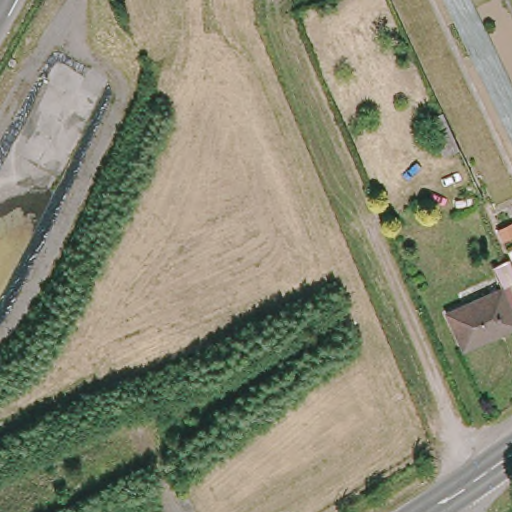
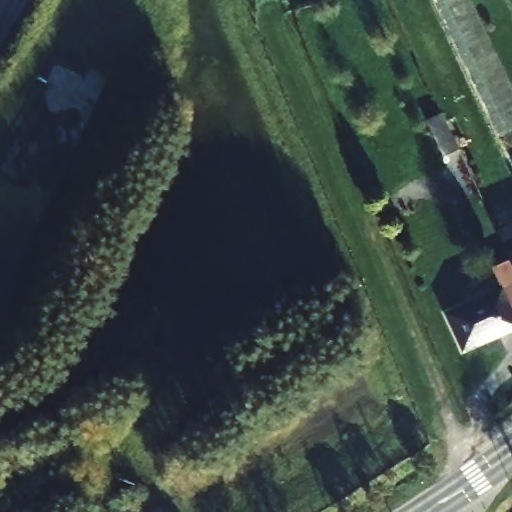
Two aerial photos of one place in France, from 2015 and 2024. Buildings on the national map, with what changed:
unchanged [(447,155),(429,116),(445,108),(463,147),(447,155)]
unchanged [(449,322),(501,297),(491,272),(507,265),(512,277),(512,337),(464,357),(449,322)]

